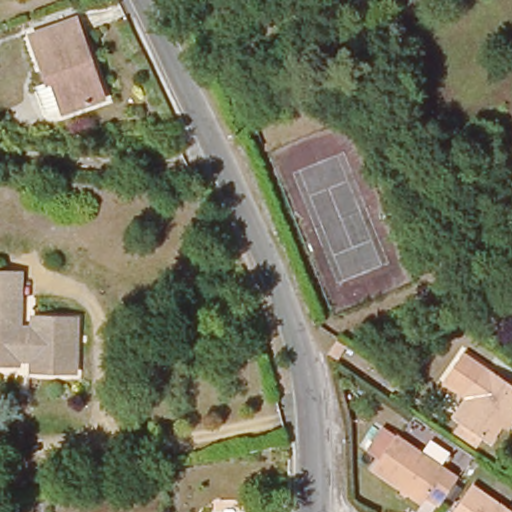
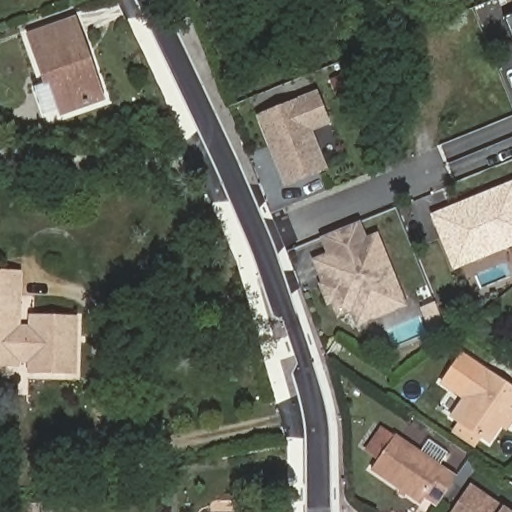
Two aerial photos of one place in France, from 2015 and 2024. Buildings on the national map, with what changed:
new [(512,14),(512,38),(504,18),(512,14)]
unchanged [(88,70),(92,69),(103,98),(61,113),(51,82),(46,84),(29,36),(70,22),(88,70)]
new [(314,132),(329,170),(285,187),(256,116),(317,91),(332,125),(314,132)]
new [(512,243),(454,265),(434,216),(512,184),(512,243)]
new [(378,232),(408,307),(355,327),(351,314),(338,319),(332,304),(328,307),(319,284),(322,283),(312,259),(327,254),(321,239),(361,223),(367,237),(378,232)]
unchanged [(0,365),(0,275),(18,275),(16,329),(33,330),(33,318),(75,319),(73,373),(31,372),(31,359),(16,359),(16,365),(0,365)]
unchanged [(452,422),(465,403),(441,387),(462,357),(485,374),(512,391),(512,425),(509,428),(504,424),(488,447),(452,422)]
unchanged [(373,464),(361,454),(376,433),(388,442),(389,441),(451,482),(432,511),(420,502),(416,508),(366,474),(373,464)]
unchanged [(476,497),(498,512),(463,512),(476,497)]

